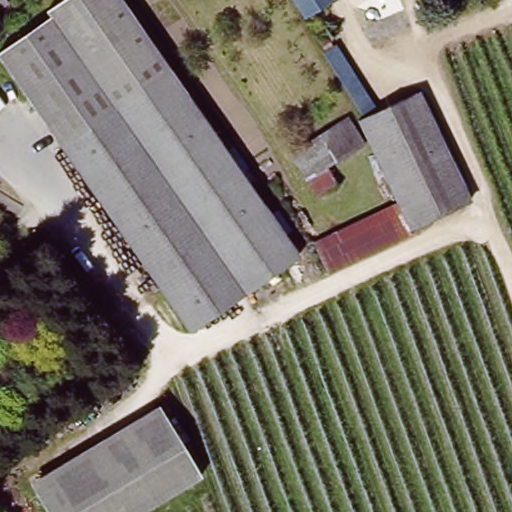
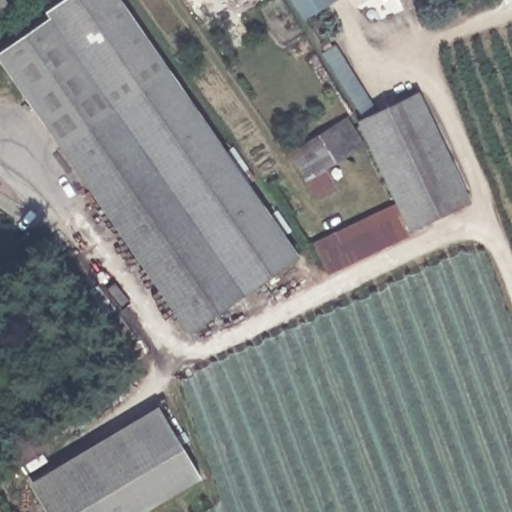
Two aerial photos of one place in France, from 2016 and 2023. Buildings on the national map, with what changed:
unchanged [(0,15),(0,0),(2,0),(8,9),(0,15)]
unchanged [(0,56),(0,52),(50,16),(46,9),(60,0),(121,0),(272,217),(160,289),(0,56)]
unchanged [(323,0),(327,5),(306,18),(294,0),(323,0)]
unchanged [(345,0),(340,3),(339,0),(345,0)]
unchanged [(414,9),(418,8),(414,0),(423,0),(425,4),(429,3),(438,21),(422,29),(414,9)]
unchanged [(400,202),(359,119),(419,91),(473,203),(415,231),(400,202)]
unchanged [(359,150),(333,169),(345,184),(320,200),(290,156),(345,122),(359,150)]
unchanged [(400,202),(415,231),(328,274),(314,245),(400,202)]
unchanged [(299,255),(190,330),(160,289),(272,217),(299,255)]
unchanged [(204,465),(141,512),(47,512),(31,491),(155,400),(204,465)]

